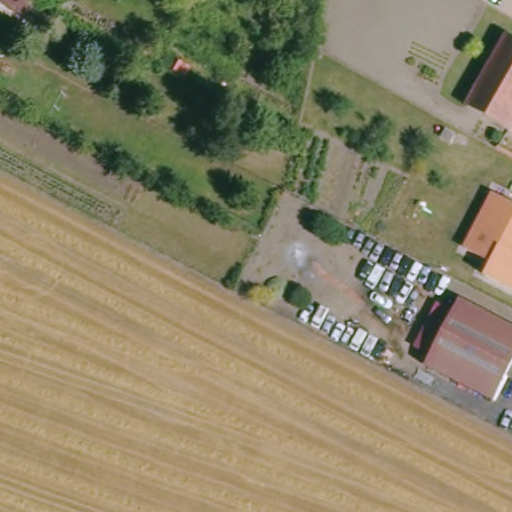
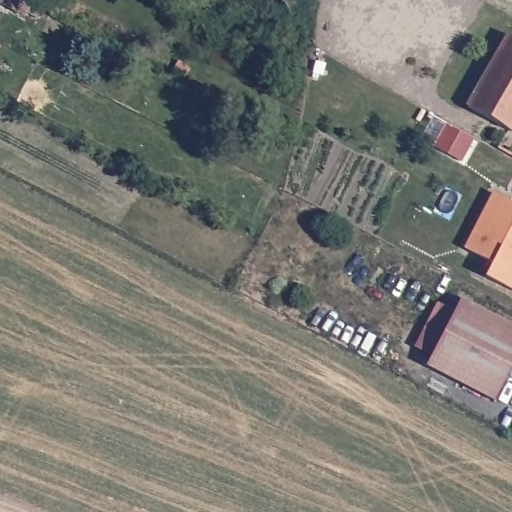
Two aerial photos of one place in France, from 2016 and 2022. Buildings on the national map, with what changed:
unchanged [(29,8),(13,0),(33,0),(29,8)]
unchanged [(506,40),(512,43),(512,132),(469,109),(506,40)]
unchanged [(494,264),(468,250),(497,195),(512,203),(512,290),(488,278),(494,264)]
unchanged [(512,354),(492,396),(423,360),(455,297),(512,325),(512,354)]

